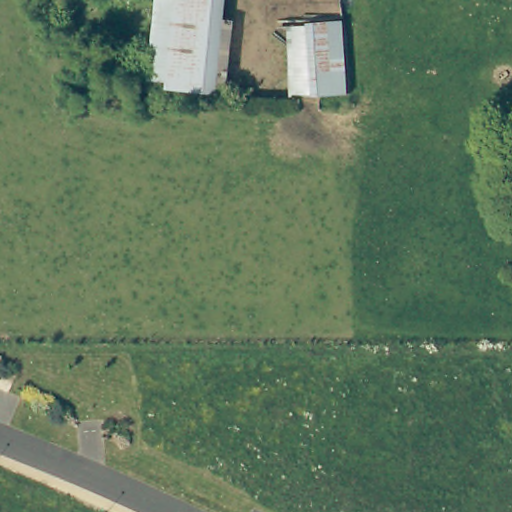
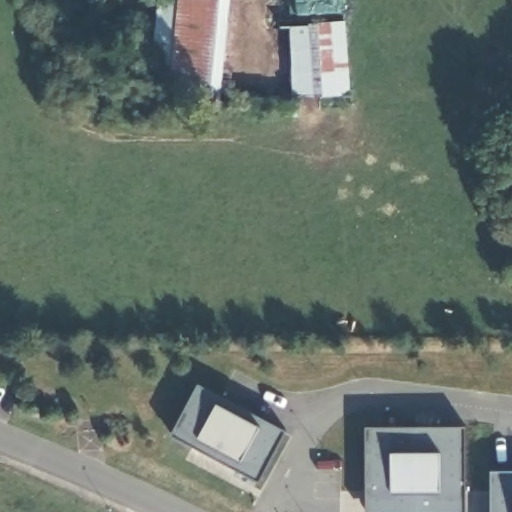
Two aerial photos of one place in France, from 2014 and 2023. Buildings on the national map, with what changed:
unchanged [(171,0),(217,0),(208,92),(159,88),(171,0)]
unchanged [(321,96),(295,95),(295,72),(295,51),(294,27),(314,25),(314,24),(344,21),(350,94),(321,96)]
new [(197,383),(284,431),(257,482),(169,435),(197,383)]
new [(465,512),(365,512),(364,426),(464,427),(465,512)]
new [(491,512),(491,471),(512,470),(512,512),(491,512)]

